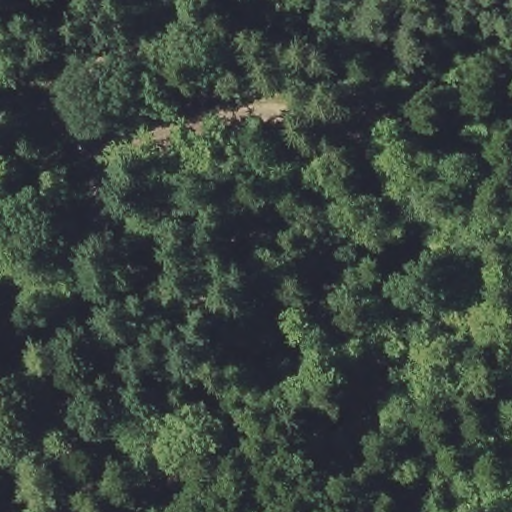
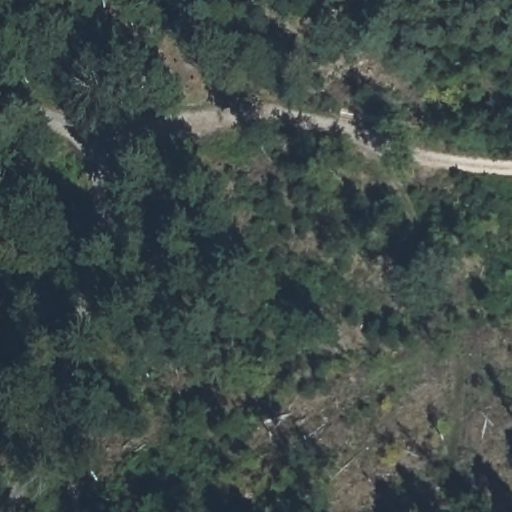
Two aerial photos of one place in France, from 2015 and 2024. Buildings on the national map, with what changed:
unchanged [(76,65),(54,67),(55,38),(73,40),(76,65)]

